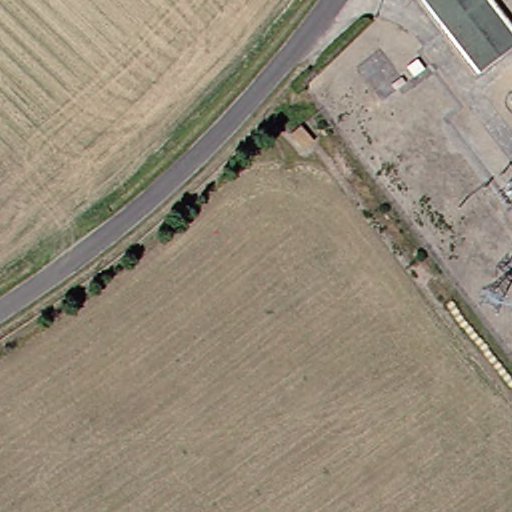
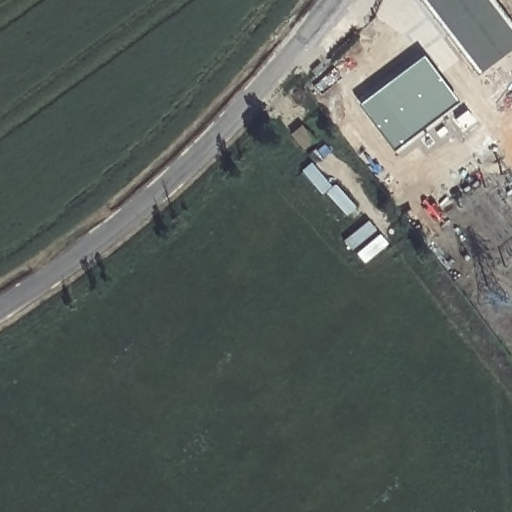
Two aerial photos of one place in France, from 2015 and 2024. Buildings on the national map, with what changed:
unchanged [(469,75),(409,0),(490,0),(512,27),(512,41),(469,75)]
new [(423,57),(457,103),(392,151),(358,106),(423,57)]
new [(303,125),(316,139),(305,148),(293,134),(303,125)]
unchanged [(286,146),(298,161),(287,170),(276,155),(286,146)]

